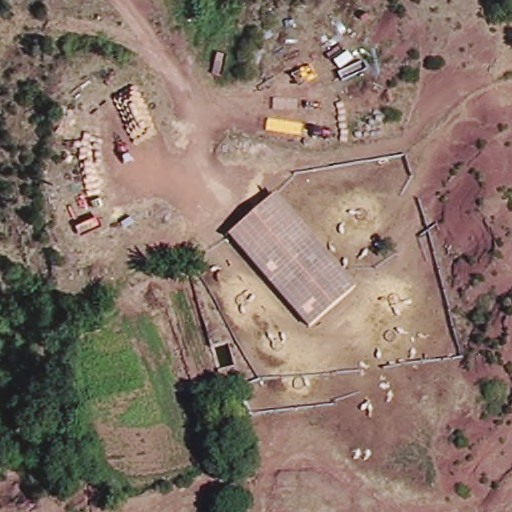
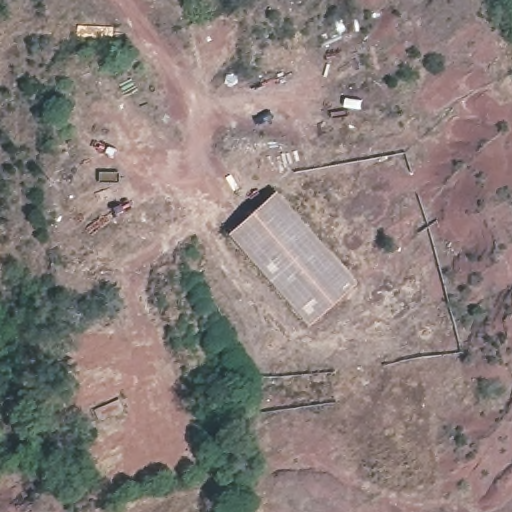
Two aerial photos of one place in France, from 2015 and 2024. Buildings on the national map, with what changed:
unchanged [(273,191),(357,281),(312,320),(228,232),(273,191)]

